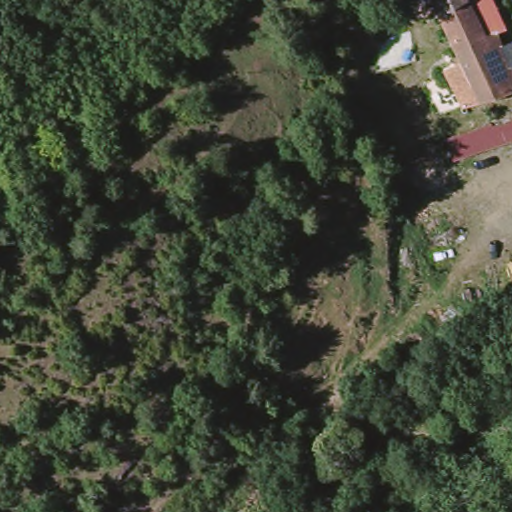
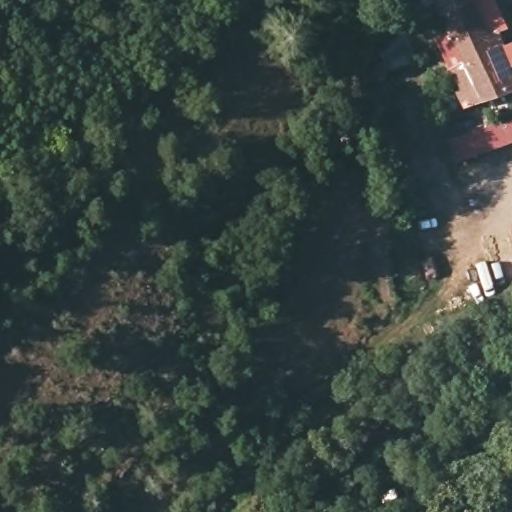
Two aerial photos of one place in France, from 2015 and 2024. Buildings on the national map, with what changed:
unchanged [(490,104),(462,60),(471,55),(435,0),(485,0),(512,43),(512,92),(490,104)]
unchanged [(512,122),(512,138),(455,160),(451,145),(512,122)]

